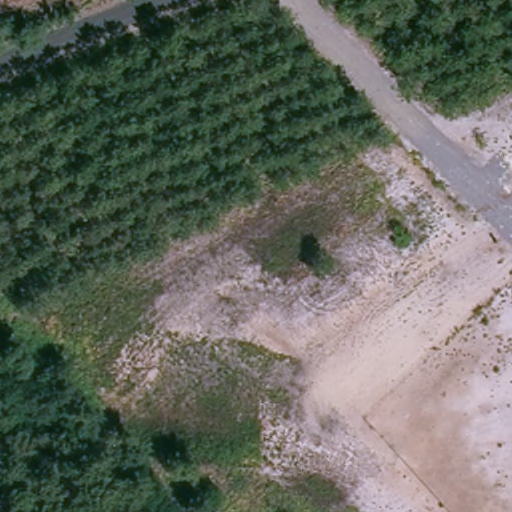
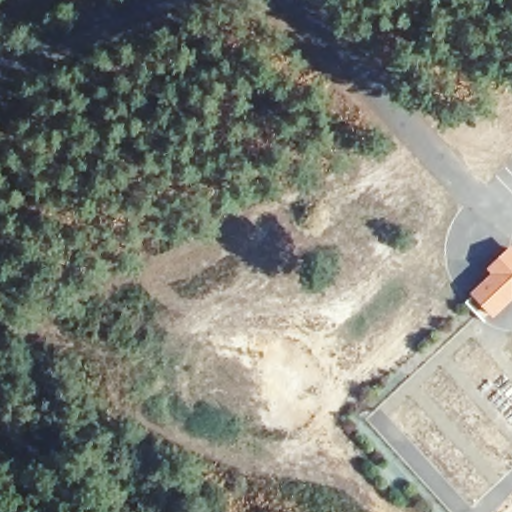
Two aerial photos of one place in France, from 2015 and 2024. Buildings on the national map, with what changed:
new [(485,307),(472,292),(492,272),(487,267),(512,246),(512,301),(495,318),(485,307)]

